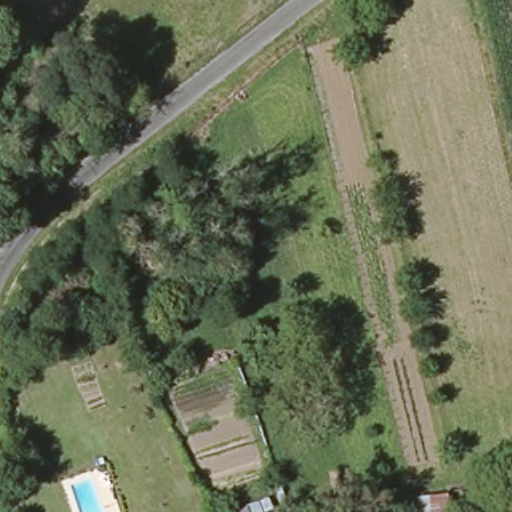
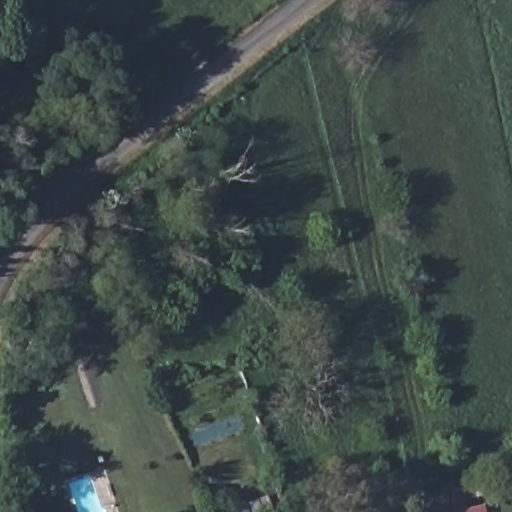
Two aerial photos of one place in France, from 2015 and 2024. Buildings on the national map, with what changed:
unchanged [(449,493),(452,512),(414,512),(413,497),(449,493)]

